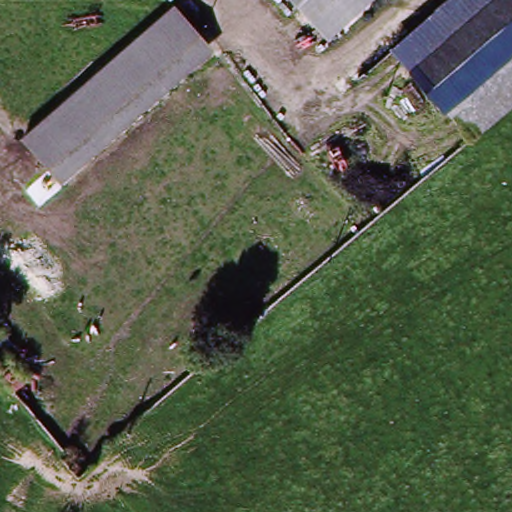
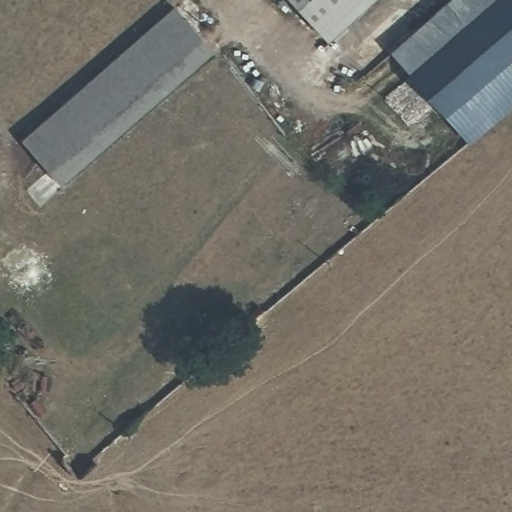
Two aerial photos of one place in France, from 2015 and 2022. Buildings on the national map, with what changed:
unchanged [(288,0),(376,0),(327,44),(288,0)]
unchanged [(452,0),(492,0),(406,73),(393,50),(452,0)]
unchanged [(492,0),(512,0),(512,58),(510,59),(512,61),(512,110),(469,143),(406,73),(492,0)]
unchanged [(18,138),(173,6),(211,53),(56,184),(18,138)]
unchanged [(512,58),(512,61),(510,59),(512,58)]

